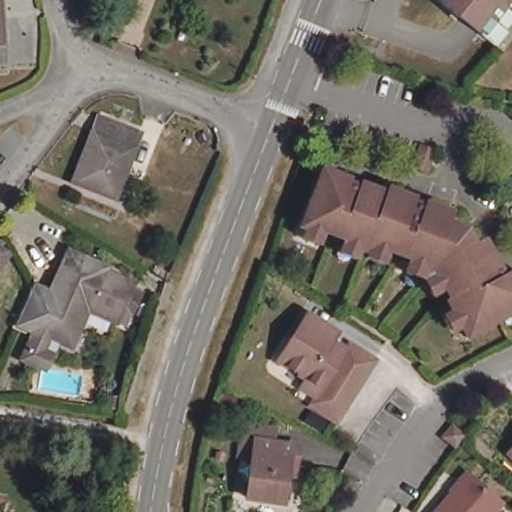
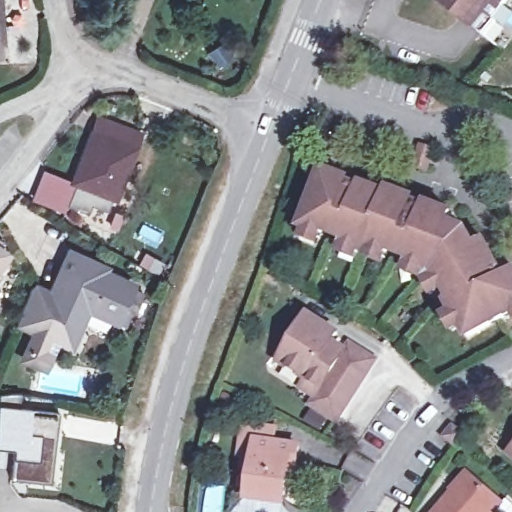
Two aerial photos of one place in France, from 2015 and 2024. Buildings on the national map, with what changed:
unchanged [(2,40),(0,40),(0,0),(2,40)]
unchanged [(444,2),(445,0),(512,0),(512,2),(499,20),(488,34),(487,35),(477,28),(444,2)]
unchanged [(114,197),(74,182),(99,117),(139,134),(114,197)]
unchanged [(427,169),(414,164),(422,146),(434,151),(427,169)]
unchanged [(345,244),(323,235),(321,238),(301,230),(323,173),(385,197),(387,192),(452,217),(449,226),(466,232),(474,248),(484,244),(504,279),(512,275),(512,315),(467,341),(445,303),(448,302),(443,292),(441,294),(431,276),(409,267),(410,263),(387,255),(386,258),(366,251),(365,255),(344,247),(345,244)]
unchanged [(56,354),(50,367),(28,356),(41,327),(40,327),(75,251),(110,267),(108,271),(136,285),(135,288),(145,292),(136,311),(126,307),(121,319),(92,306),(75,342),(55,333),(48,350),(56,354)]
unchanged [(2,256),(0,258),(0,254),(2,256)]
unchanged [(378,358),(338,420),(311,402),(318,393),(304,385),(309,377),(281,358),(309,317),(336,335),(333,341),(346,350),(352,342),(378,358)]
new [(19,394),(18,406),(30,407),(30,410),(58,412),(50,483),(10,478),(13,450),(0,448),(0,394),(19,394)]
unchanged [(462,432),(454,442),(445,433),(453,425),(462,432)]
unchanged [(301,473),(294,472),(289,510),(251,505),(259,463),(245,461),(249,432),(276,437),(274,451),(304,454),(301,473)]
unchanged [(512,450),(512,464),(505,458),(512,450)]
unchanged [(503,497),(489,512),(435,512),(472,470),(503,497)]

